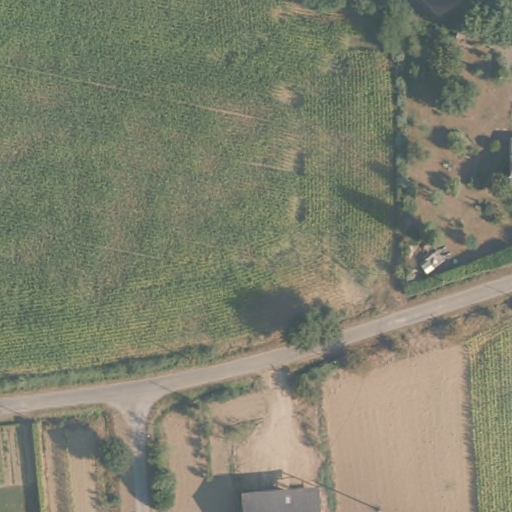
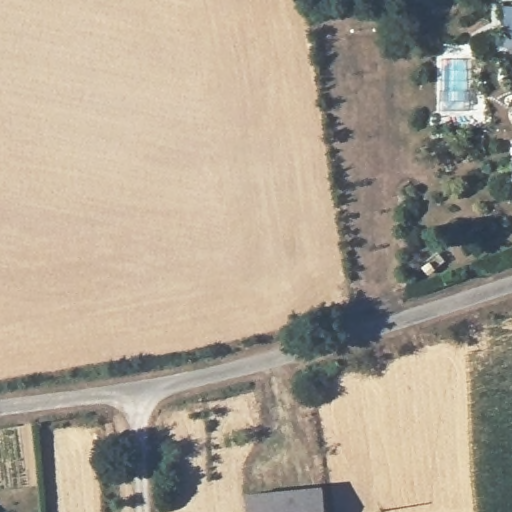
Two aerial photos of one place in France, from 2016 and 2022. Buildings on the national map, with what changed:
unchanged [(512,6),(512,45),(506,44),(506,43),(507,35),(507,8),(508,5),(512,6)]
unchanged [(506,141),(512,142),(512,191),(506,190),(506,141)]
unchanged [(328,512),(246,512),(244,498),(324,487),(328,512)]

